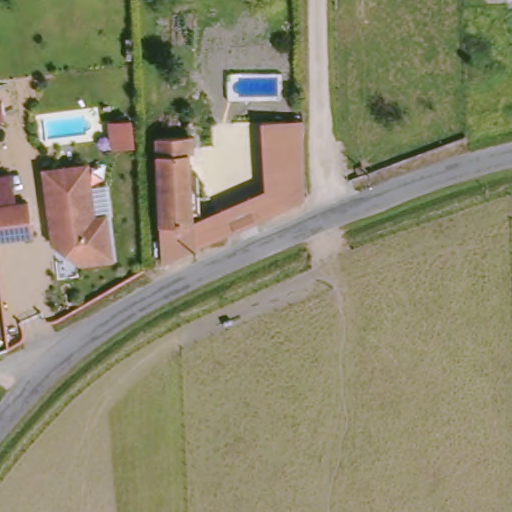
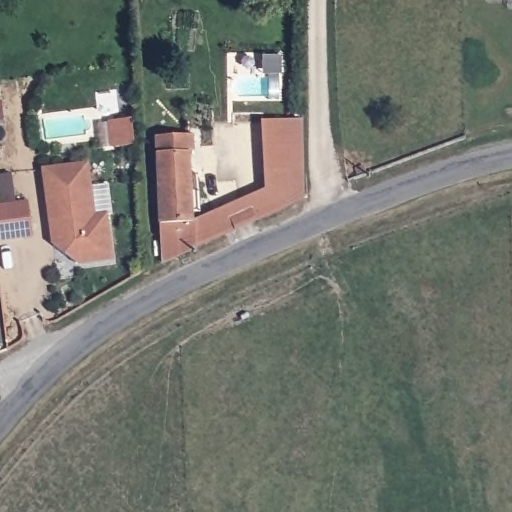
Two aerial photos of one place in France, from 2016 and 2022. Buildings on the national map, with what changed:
unchanged [(263,174),(263,124),(302,123),(304,199),(284,207),(284,173),(263,174)]
unchanged [(190,134),(195,222),(194,222),(196,246),(159,262),(151,135),(190,134)]
unchanged [(51,230),(45,169),(88,165),(93,217),(105,216),(110,260),(74,263),(63,253),(53,245),(51,230)]
unchanged [(284,173),(284,207),(196,246),(194,222),(195,222),(263,193),(263,174),(284,173)]
unchanged [(29,206),(32,239),(0,242),(0,209),(29,206)]

